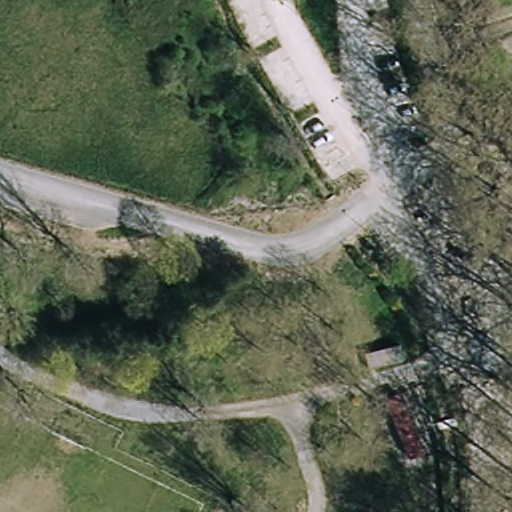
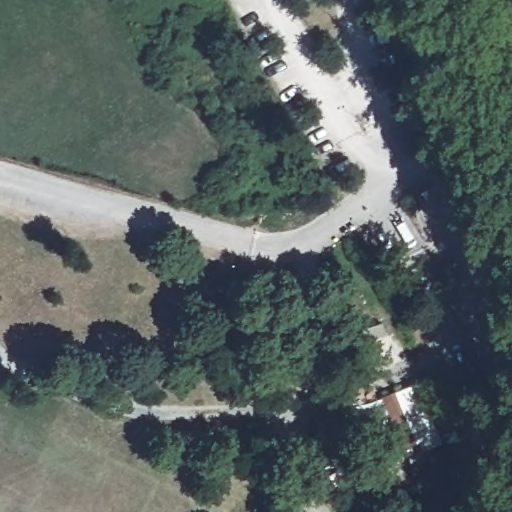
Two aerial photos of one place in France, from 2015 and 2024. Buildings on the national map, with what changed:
unchanged [(400,342),(405,360),(368,369),(364,351),(400,342)]
unchanged [(402,391),(427,450),(407,458),(383,399),(402,391)]

